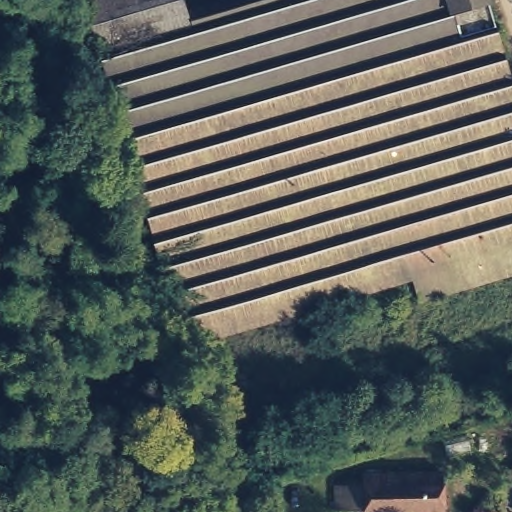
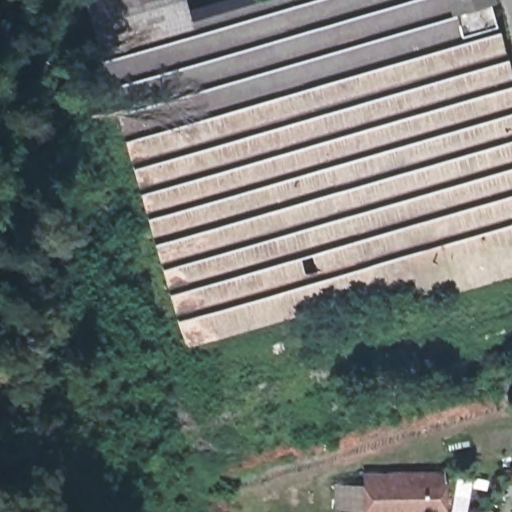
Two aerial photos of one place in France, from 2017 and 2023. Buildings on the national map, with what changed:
unchanged [(187,10),(221,0),(487,0),(512,86),(512,271),(418,298),(411,275),(187,341),(86,0),(183,0),(187,10)]
unchanged [(437,512),(359,512),(359,471),(436,470),(437,512)]

